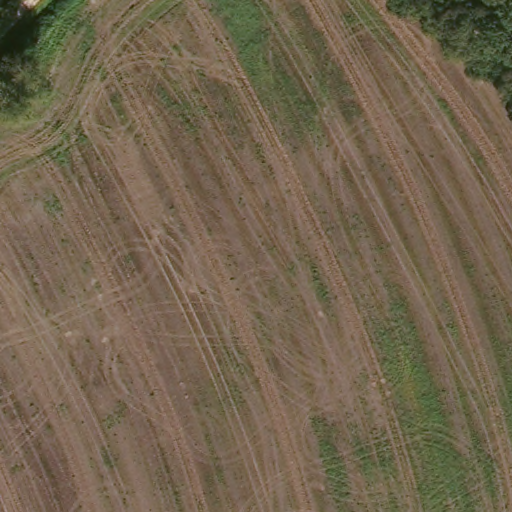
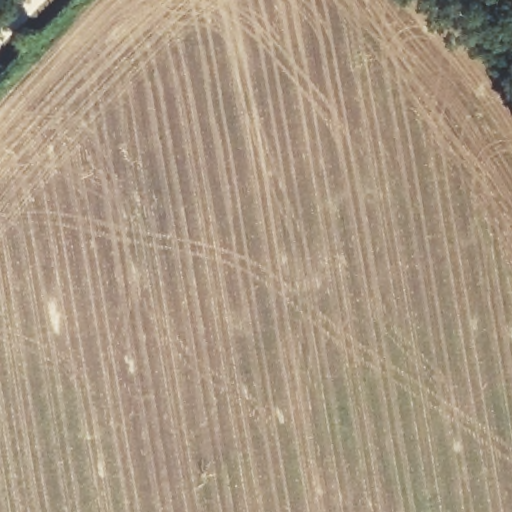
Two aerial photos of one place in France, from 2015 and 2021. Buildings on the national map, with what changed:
[]

